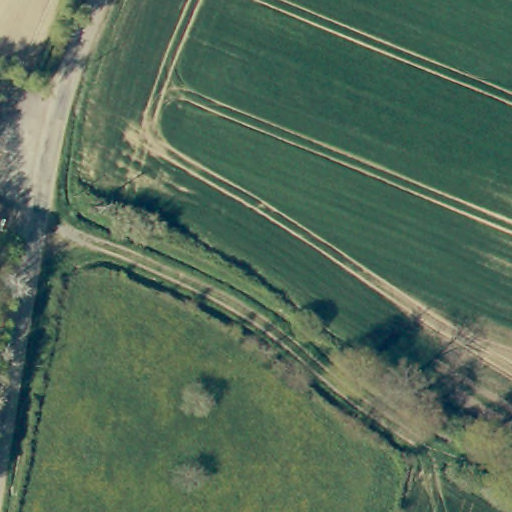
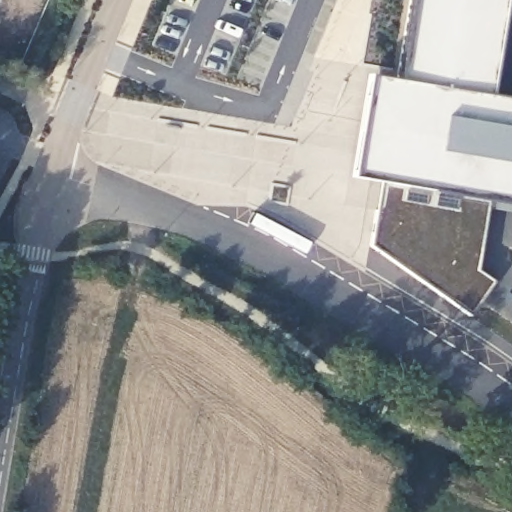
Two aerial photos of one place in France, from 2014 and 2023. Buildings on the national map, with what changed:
new [(473,268),(492,281),(468,315),(371,244),(382,181),(351,176),(370,75),(397,81),(412,0),(506,0),(489,95),(512,99),(512,214),(485,209),(473,268)]

